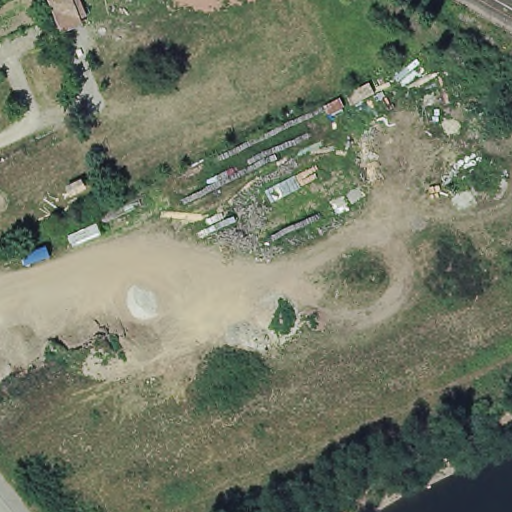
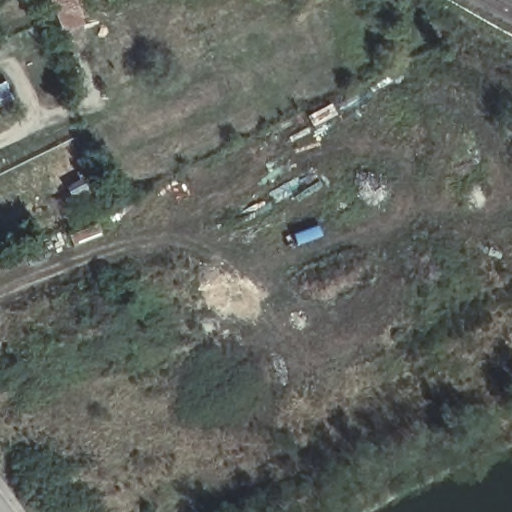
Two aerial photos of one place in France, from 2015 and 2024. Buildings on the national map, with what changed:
unchanged [(87,13),(80,16),(82,20),(60,31),(48,0),(81,0),(87,13)]

